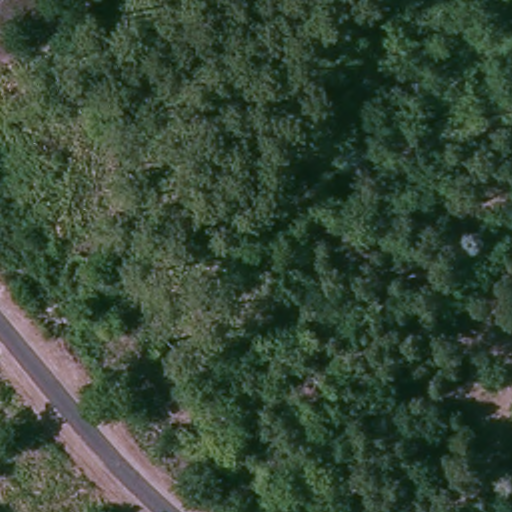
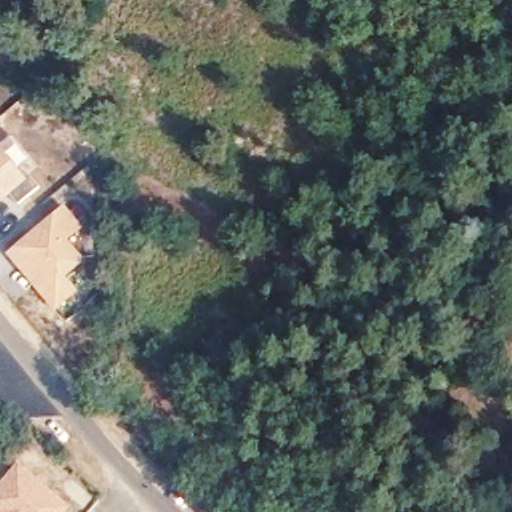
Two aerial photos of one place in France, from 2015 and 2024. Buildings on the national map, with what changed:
new [(25,177),(30,173),(40,186),(20,203),(12,194),(0,203),(0,146),(25,177)]
new [(85,227),(69,240),(87,261),(67,277),(80,292),(56,312),(8,254),(66,205),(85,227)]
unchanged [(461,306),(449,316),(436,301),(449,292),(461,306)]
new [(70,512),(0,512),(0,483),(17,463),(73,509),(70,512)]

